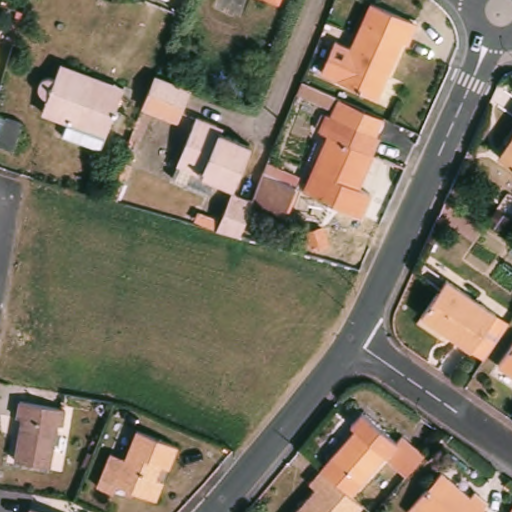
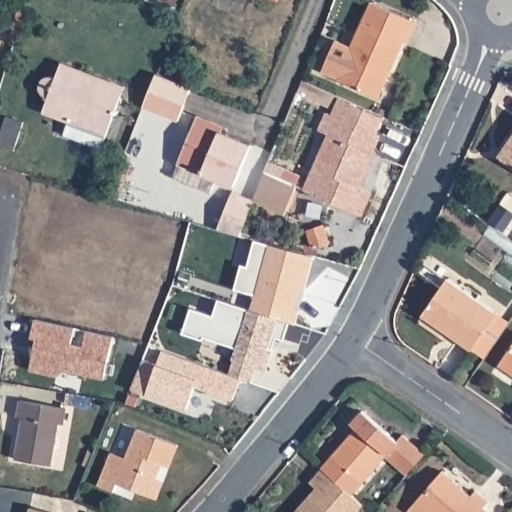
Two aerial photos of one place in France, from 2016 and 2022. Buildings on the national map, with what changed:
unchanged [(414,23),(405,43),(401,42),(374,96),(336,80),(371,4),(414,23)]
unchanged [(80,64),(127,83),(125,90),(110,130),(109,129),(103,145),(63,130),(69,114),(47,105),(52,91),(48,89),(45,86),(44,81),(45,78),(47,74),(51,71),(55,71),(60,71),(64,59),(80,64)]
unchanged [(174,120),(141,106),(154,74),(188,88),(174,120)]
unchanged [(377,136),(369,154),(371,155),(365,171),(362,171),(354,188),(369,194),(360,215),(303,191),(326,136),(317,132),(324,115),(377,136)]
unchanged [(12,153),(0,150),(0,127),(3,116),(20,121),(12,153)]
unchanged [(216,131),(213,136),(248,151),(232,192),(213,184),(208,194),(173,179),(177,169),(196,123),(216,131)]
unchanged [(503,161),(512,149),(512,167),(503,161)]
unchanged [(231,199),(251,206),(239,236),(219,231),(231,199)]
unchanged [(449,285),(497,319),(473,355),(424,321),(449,285)]
new [(234,348),(201,337),(201,340),(180,334),(189,308),(211,316),(216,299),(287,322),(281,340),(274,338),(263,370),(253,367),(248,382),(227,374),(232,360),(230,359),(234,348)]
new [(34,339),(28,338),(33,320),(73,329),(69,345),(81,348),(85,332),(111,338),(102,380),(64,371),(54,377),(27,371),(34,339)]
unchanged [(498,366),(512,346),(512,375),(498,366)]
new [(130,390),(143,360),(156,365),(162,351),(227,374),(239,379),(232,400),(193,386),(185,409),(147,396),(130,390)]
unchanged [(68,414),(65,432),(60,432),(52,471),(16,465),(24,423),(19,421),(22,405),(68,414)]
unchanged [(362,433),(355,428),(367,414),(402,445),(407,439),(429,457),(413,477),(391,457),(356,497),(328,472),(362,433)]
unchanged [(145,499),(113,487),(110,495),(97,490),(109,458),(123,463),(134,432),(175,448),(165,470),(153,503),(145,499)]
unchanged [(360,512),(301,512),(321,490),(314,484),(325,470),(328,472),(356,497),(366,505),(360,512)]
unchanged [(441,474),(469,498),(473,493),(487,505),(481,511),(482,512),(408,512),(441,474)]
unchanged [(28,510),(38,512),(28,512),(28,510)]

